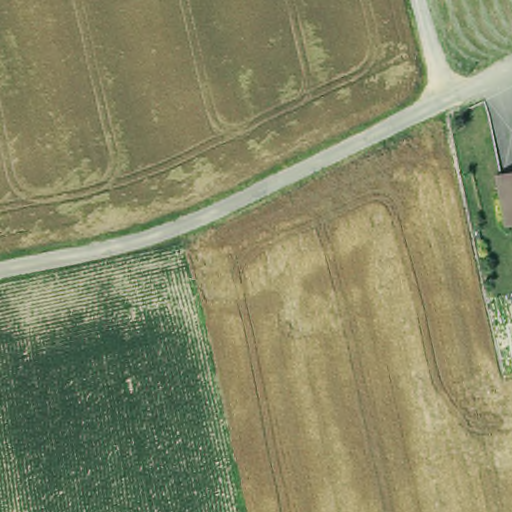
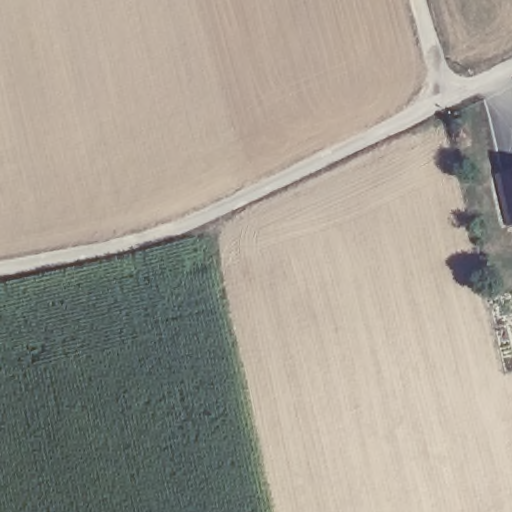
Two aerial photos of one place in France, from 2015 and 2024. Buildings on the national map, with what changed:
unchanged [(512,170),(512,245),(499,174),(512,170)]

